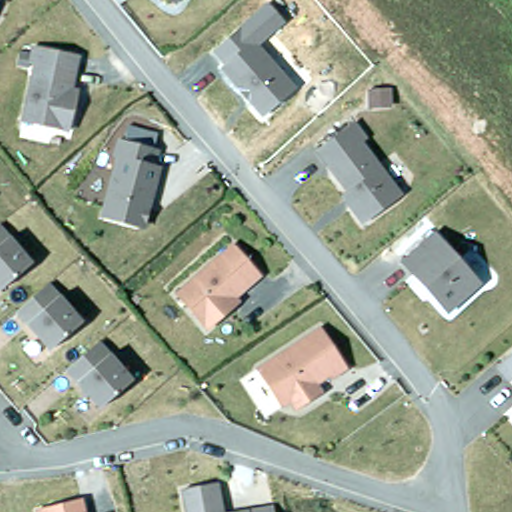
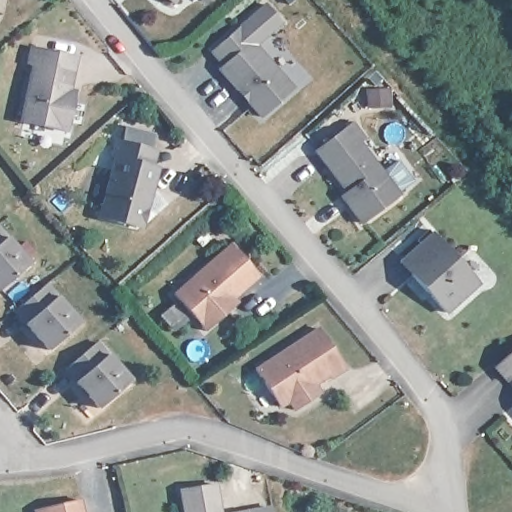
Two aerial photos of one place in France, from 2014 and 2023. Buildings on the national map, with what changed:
unchanged [(287,25),(262,46),(300,90),(262,120),(220,70),(225,64),(212,49),(268,3),(287,25)]
unchanged [(39,54),(34,53),(38,36),(80,46),(77,62),(79,62),(73,86),(79,87),(72,119),(27,110),(39,54)]
unchanged [(380,77),(380,92),(360,93),(359,78),(380,77)]
unchanged [(347,179),(317,139),(352,111),(365,127),(360,130),(399,182),(362,210),(350,194),(342,183),(347,179)]
unchanged [(147,210),(140,215),(105,206),(120,146),(117,146),(121,129),(160,139),(155,155),(161,156),(156,176),(150,199),(147,210)]
unchanged [(35,249),(3,276),(0,272),(0,212),(2,210),(35,249)]
unchanged [(402,247),(432,220),(477,268),(445,297),(412,260),(413,258),(402,247)]
unchanged [(205,330),(174,296),(229,247),(256,277),(230,300),(234,304),(229,308),(205,330)]
unchanged [(54,271),(86,308),(55,335),(23,299),(21,296),(52,269),(54,271)]
unchanged [(344,366),(330,376),(328,373),(308,387),(314,395),(294,409),(288,400),(280,406),(254,369),(316,326),(344,366)]
unchanged [(135,366),(105,393),(72,356),(102,328),(135,366)]
unchanged [(497,362),(512,350),(512,375),(508,378),(497,362)]
unchanged [(212,481),(218,512),(181,512),(177,488),(212,481)]
unchanged [(78,512),(37,512),(76,503),(78,512)]
unchanged [(243,508),(244,512),(227,512),(227,511),(243,508)]

